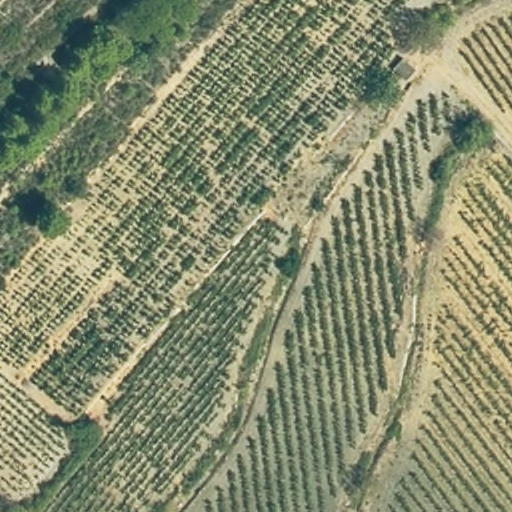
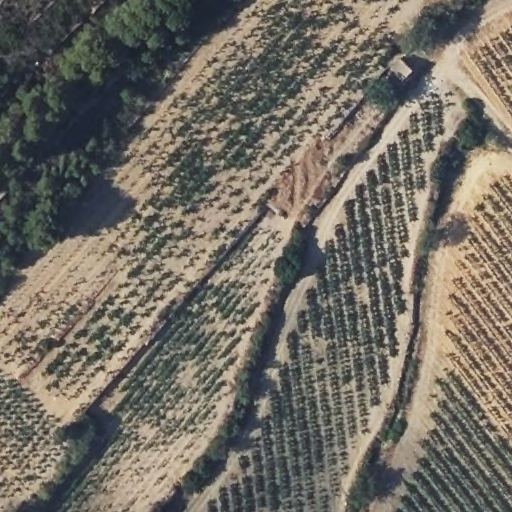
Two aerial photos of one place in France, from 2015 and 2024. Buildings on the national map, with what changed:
unchanged [(383,67),(396,51),(410,62),(398,78),(383,67)]

